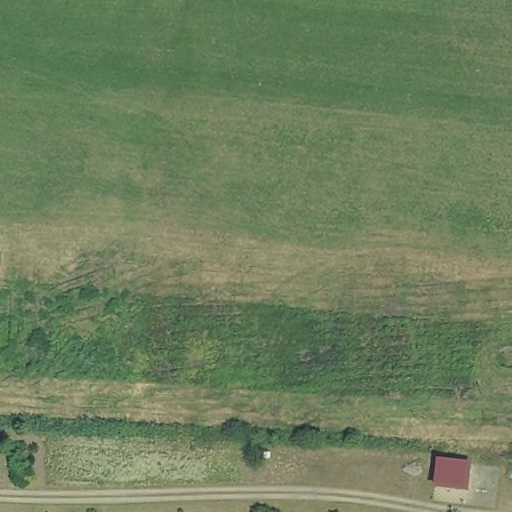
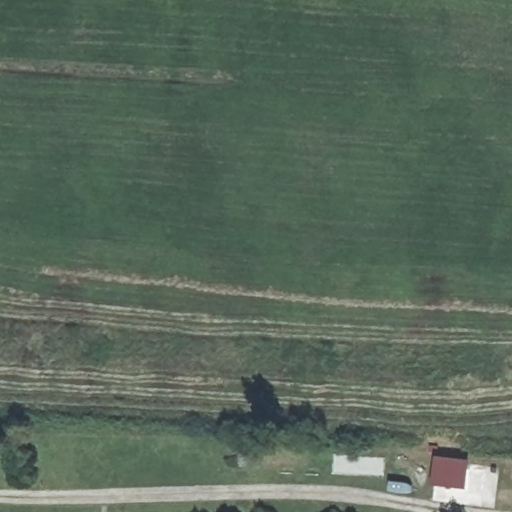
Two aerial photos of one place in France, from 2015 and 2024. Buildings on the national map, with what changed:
unchanged [(429,499),(433,463),(471,467),(467,502),(429,499)]

